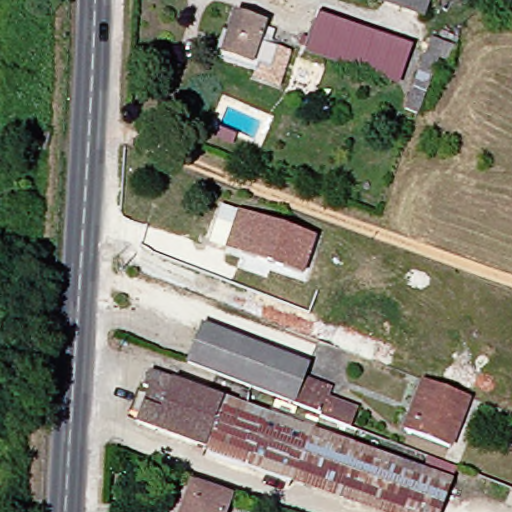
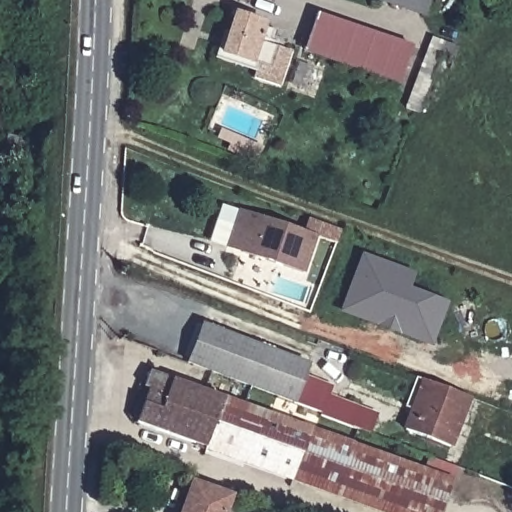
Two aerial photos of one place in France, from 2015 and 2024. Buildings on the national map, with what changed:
unchanged [(424,16),(378,0),(379,0),(429,0),(424,16)]
unchanged [(265,27),(276,31),(271,45),(292,52),(281,87),(250,76),(254,64),(222,52),(235,14),(265,25),(265,27)]
unchanged [(400,82),(307,50),(319,15),(412,47),(400,82)]
unchanged [(405,113),(431,37),(458,47),(453,62),(440,57),(435,72),(419,117),(405,113)]
unchanged [(232,142),(219,136),(221,131),(235,137),(232,142)]
unchanged [(316,238),(303,272),(243,251),(246,244),(231,239),(241,212),(316,238)]
new [(362,253),(415,273),(411,287),(449,302),(432,346),(341,313),(362,253)]
demolished [(287,329),(296,307),(328,320),(320,341),(287,329)]
unchanged [(296,406),(187,365),(202,324),(311,365),(307,376),(296,406)]
unchanged [(449,512),(378,512),(142,427),(155,395),(149,392),(156,374),(460,484),(449,512)]
unchanged [(307,376),(333,386),(330,396),(359,407),(352,427),(296,406),(307,376)]
unchanged [(451,447),(406,430),(412,415),(417,417),(431,383),(470,398),(451,447)]
unchanged [(188,512),(198,483),(236,496),(230,512),(188,512)]

